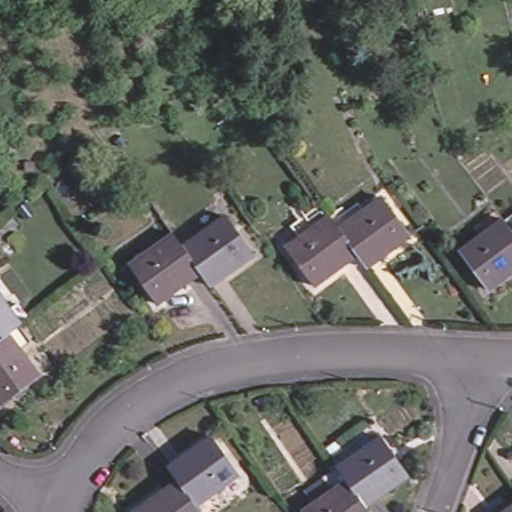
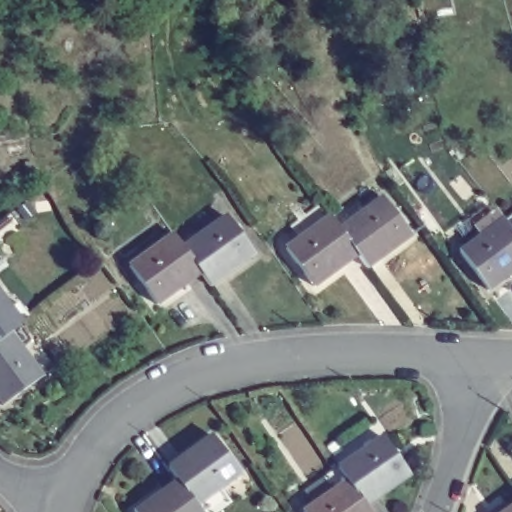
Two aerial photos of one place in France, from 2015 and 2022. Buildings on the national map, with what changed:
unchanged [(344,245),(328,224),(373,190),(400,226),(356,260),(344,245)]
unchanged [(328,224),(344,245),(304,277),(275,240),(316,208),(328,224)]
unchanged [(198,270),(181,246),(222,214),(250,252),(209,283),(198,270)]
unchanged [(512,238),(512,261),(482,283),(454,247),(495,217),(504,229),(512,238)]
unchanged [(512,224),(512,238),(504,229),(512,224)]
unchanged [(181,246),(198,270),(156,301),(127,262),(169,231),(181,246)]
unchanged [(8,343),(30,372),(0,396),(0,304),(3,308),(11,303),(19,313),(12,319),(8,322),(18,336),(8,343)]
unchanged [(125,503),(169,472),(158,457),(196,429),(223,467),(209,477),(219,490),(196,507),(188,512),(131,512),(125,503)]
unchanged [(376,441),(400,475),(363,503),(338,468),(376,441)]
unchanged [(302,511),(333,488),(323,475),(336,466),(338,468),(363,503),(369,512),(303,512),(302,511)]
unchanged [(512,500),(512,512),(496,512),(512,500)]

